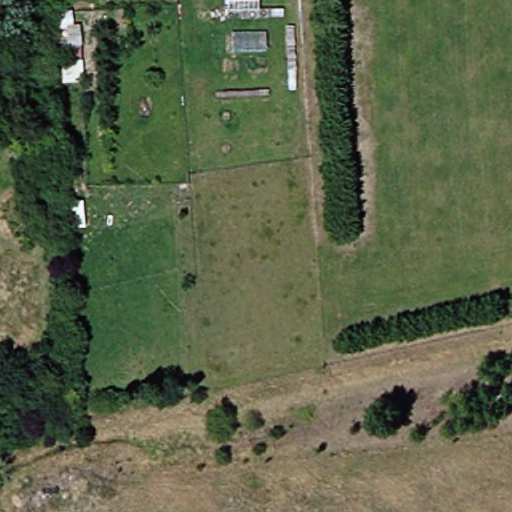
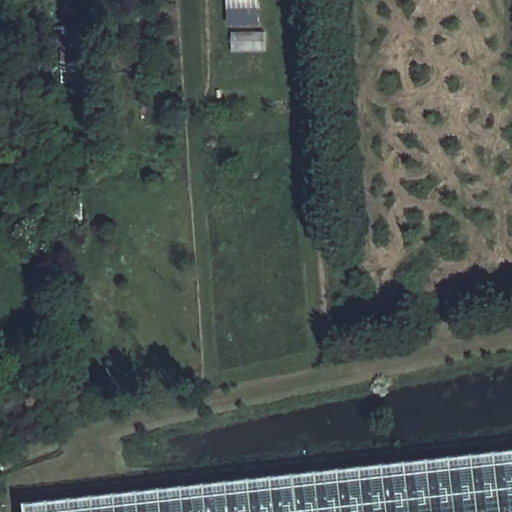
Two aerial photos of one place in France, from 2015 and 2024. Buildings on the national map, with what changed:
new [(23,512),(22,501),(512,448),(512,512),(23,512)]

